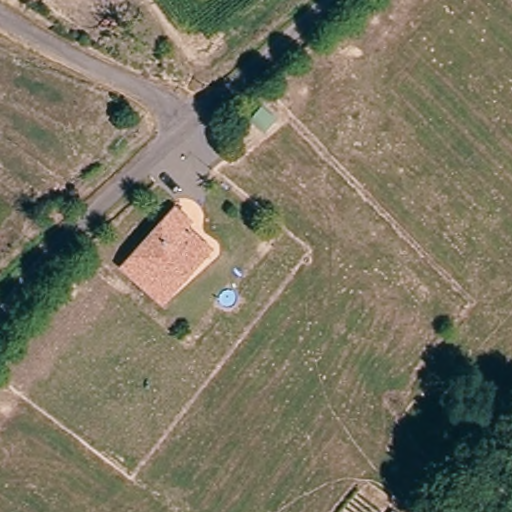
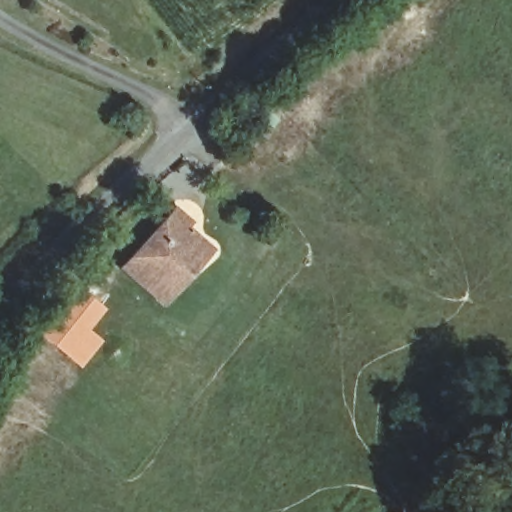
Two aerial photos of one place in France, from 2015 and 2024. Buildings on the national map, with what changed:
unchanged [(174,282),(157,301),(120,266),(174,207),(203,236),(210,243),(174,282)]
new [(77,287),(105,309),(88,330),(102,341),(79,368),(38,335),(77,287)]
unchanged [(391,507),(397,512),(387,512),(391,507)]

